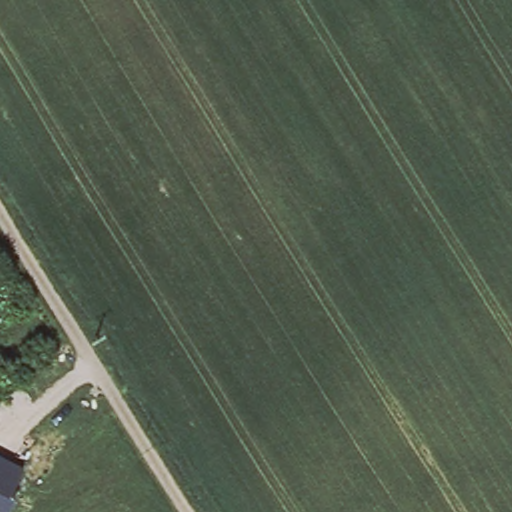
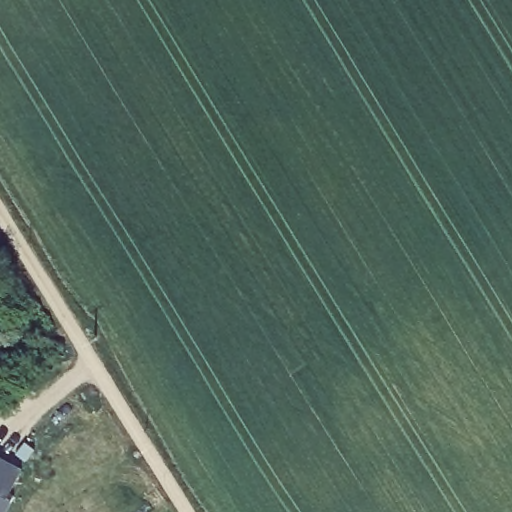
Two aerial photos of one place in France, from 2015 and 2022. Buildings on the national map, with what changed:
unchanged [(15,492),(20,496),(11,512),(0,512),(0,455),(26,467),(15,492)]

